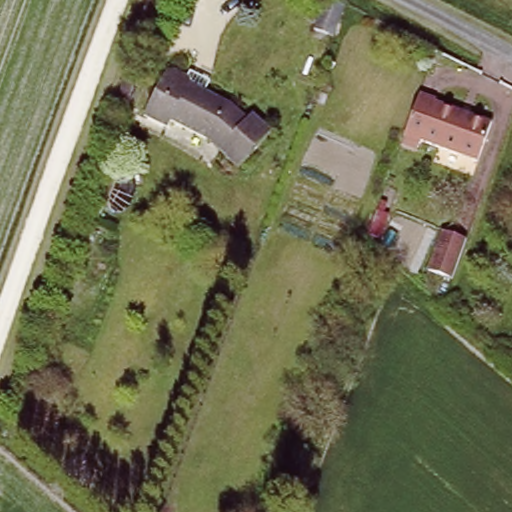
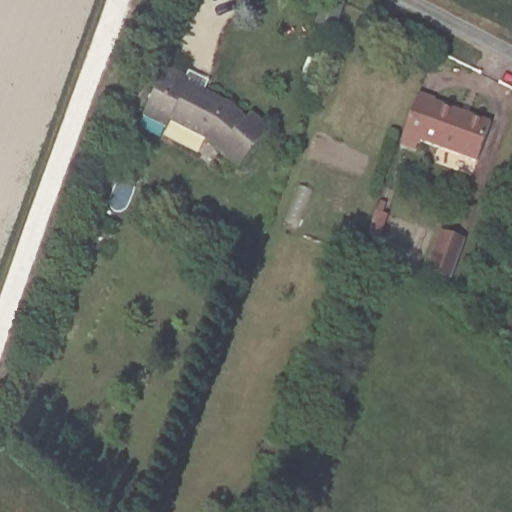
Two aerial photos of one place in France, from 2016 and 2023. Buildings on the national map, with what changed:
unchanged [(336,42),(318,36),(330,3),(348,10),(336,42)]
unchanged [(161,75),(168,70),(181,74),(189,83),(235,100),(249,115),(254,111),(274,134),(239,165),(210,134),(176,119),(173,127),(145,115),(161,75)]
unchanged [(442,149),(424,141),(422,146),(407,140),(424,95),(439,100),(438,102),(494,123),(480,162),(442,149)]
unchanged [(468,239),(454,280),(428,270),(441,231),(468,239)]

